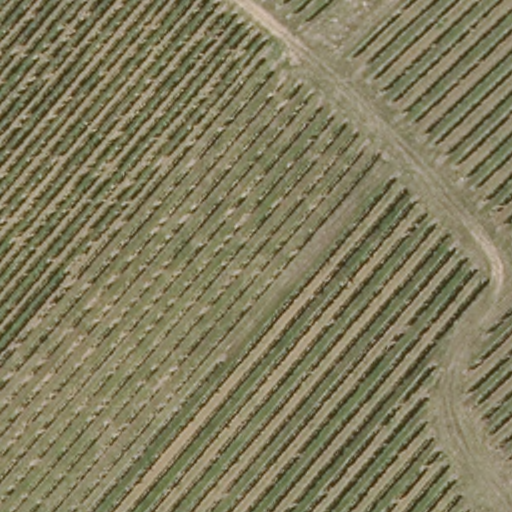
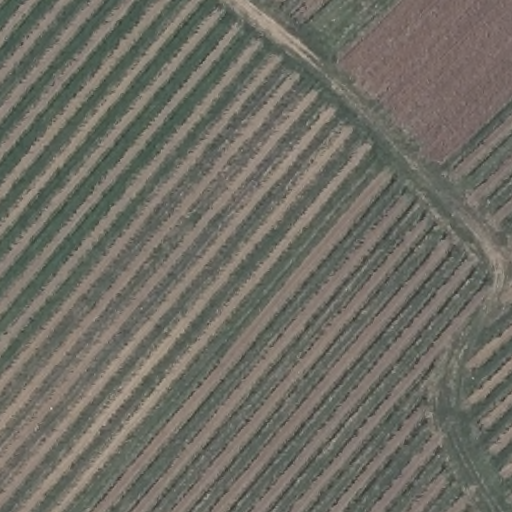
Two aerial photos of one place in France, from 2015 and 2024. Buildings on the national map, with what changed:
[]

